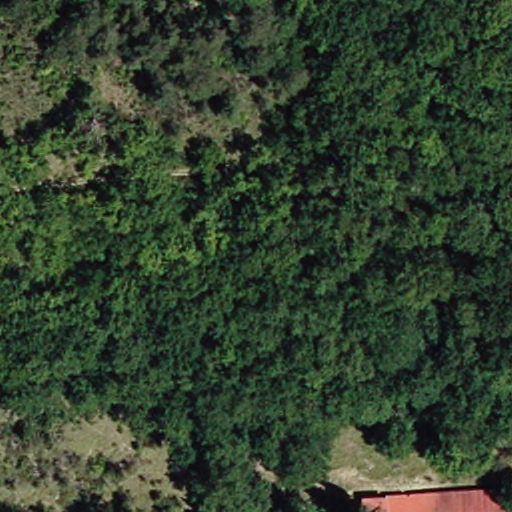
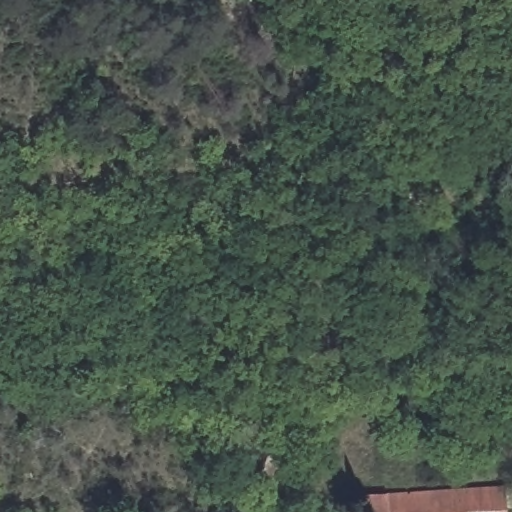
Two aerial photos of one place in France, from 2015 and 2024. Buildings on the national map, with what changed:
unchanged [(372,497),(512,489),(512,512),(374,512),(372,497)]

